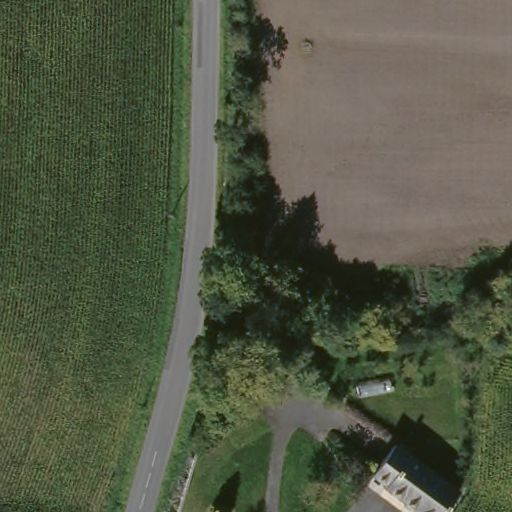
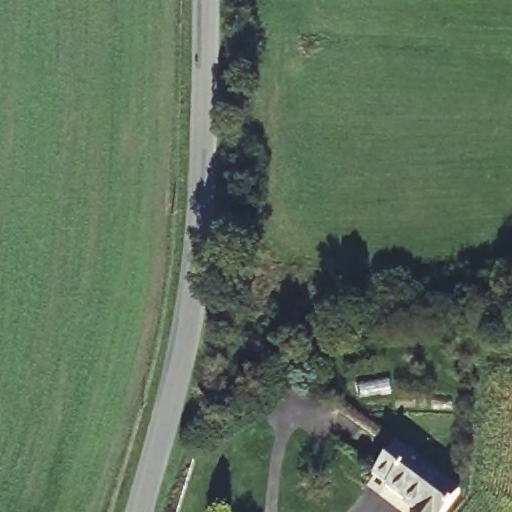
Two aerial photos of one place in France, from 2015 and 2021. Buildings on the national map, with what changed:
unchanged [(463,496),(450,512),(410,512),(386,492),(390,487),(378,476),(399,448),(463,496)]

